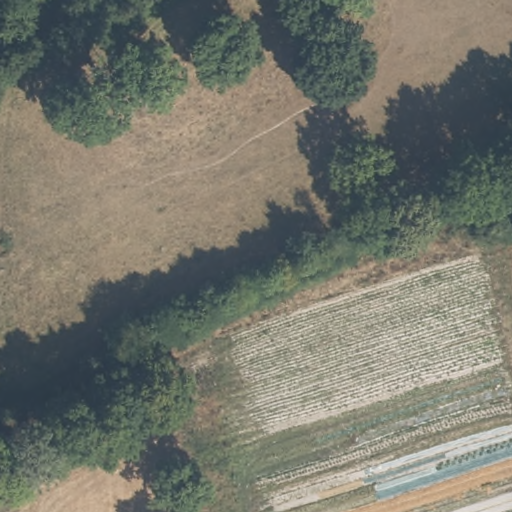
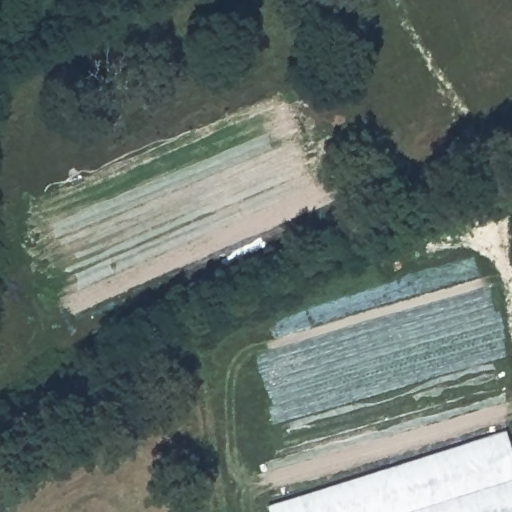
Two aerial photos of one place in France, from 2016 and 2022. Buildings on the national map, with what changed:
new [(512,451),(512,512),(268,512),(266,504),(506,432),(512,451)]

